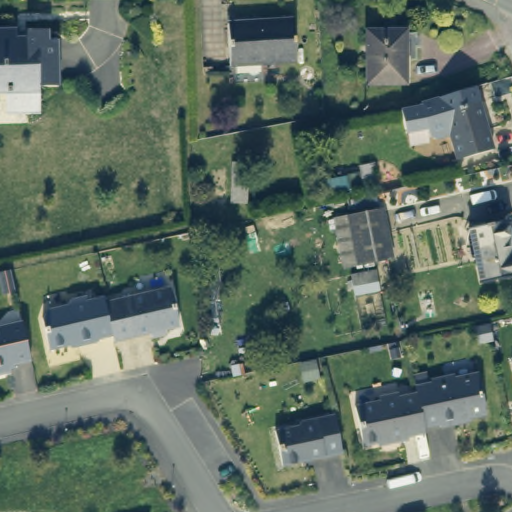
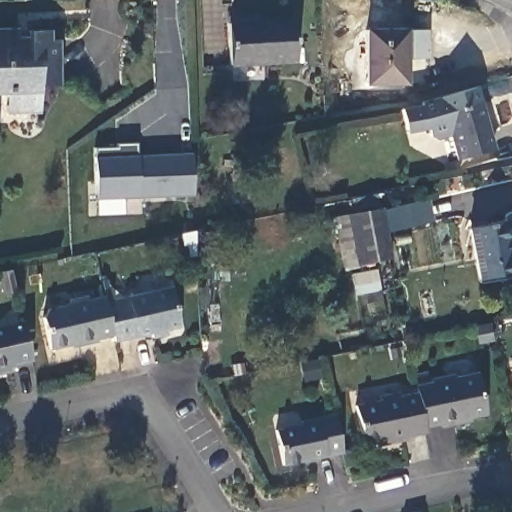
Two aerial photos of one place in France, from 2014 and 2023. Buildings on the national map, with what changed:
unchanged [(294,25),(296,66),(228,69),(226,27),(294,25)]
unchanged [(17,39),(28,37),(28,28),(47,27),(48,37),(57,38),(59,83),(39,85),(40,110),(6,110),(6,90),(0,90),(0,27),(17,26),(17,39)]
unchanged [(368,30),(407,30),(407,84),(367,84),(368,30)]
unchanged [(407,135),(403,109),(423,105),(425,101),(476,89),(495,150),(458,162),(451,137),(437,141),(431,138),(428,130),(407,135)]
new [(114,146),(114,144),(135,142),(137,162),(147,161),(146,154),(190,151),(193,192),(96,199),(93,148),(114,146)]
unchanged [(232,160),(247,161),(244,204),(230,202),(232,160)]
unchanged [(359,265),(350,216),(358,215),(379,210),(389,259),(367,263),(359,265)]
unchanged [(470,228),(503,220),(510,252),(512,252),(512,275),(482,281),(470,228)]
unchanged [(173,290),(182,329),(168,332),(169,337),(153,340),(152,335),(116,343),(114,337),(107,305),(173,290)]
unchanged [(114,337),(98,341),(98,343),(79,348),(79,345),(51,352),(44,320),(50,311),(69,307),(72,301),(88,298),(89,302),(105,298),(107,305),(114,337)]
unchanged [(13,370),(13,374),(0,377),(0,329),(24,323),(33,362),(18,366),(13,370)]
unchanged [(434,389),(435,385),(454,381),(461,383),(480,380),(488,418),(462,424),(459,428),(444,431),(439,428),(427,431),(421,397),(419,392),(434,389)]
unchanged [(409,441),(410,443),(394,447),(388,445),(367,450),(359,410),(382,405),(383,401),(400,397),(401,401),(421,397),(427,431),(429,437),(409,441)]
unchanged [(287,469),(280,435),(301,430),(304,425),(337,420),(344,458),(287,469)]

